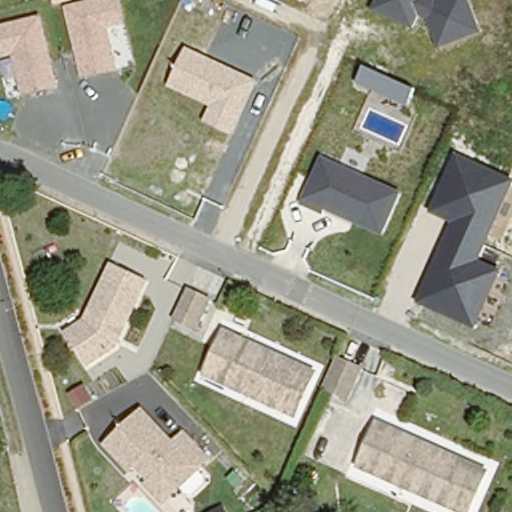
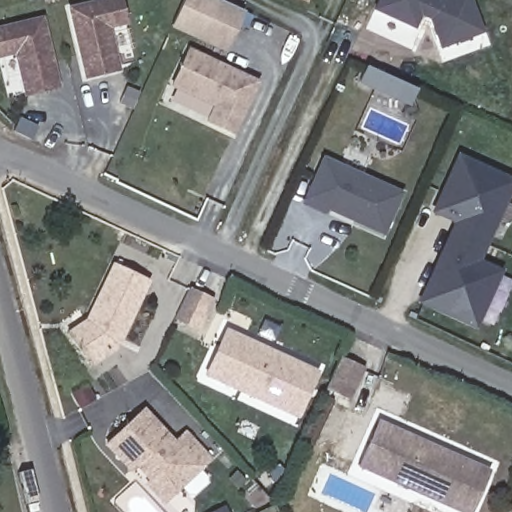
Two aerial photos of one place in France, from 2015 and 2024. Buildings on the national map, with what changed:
unchanged [(120,40),(112,42),(119,69),(105,73),(103,67),(86,72),(72,10),(114,0),(120,0),(126,24),(116,27),(120,40)]
new [(173,26),(184,0),(220,0),(244,11),(226,49),(173,26)]
unchanged [(296,0),(304,0),(303,3),(296,0)]
unchanged [(432,20),(422,16),(416,32),(372,12),(377,0),(438,0),(472,0),(484,34),(442,49),(432,20)]
unchanged [(41,20),(57,87),(27,95),(17,51),(0,55),(0,30),(41,20)]
unchanged [(233,137),(204,123),(211,106),(169,87),(186,47),(258,82),(233,137)]
new [(408,106),(357,84),(365,67),(417,90),(408,106)]
unchanged [(503,271),(477,330),(417,303),(453,223),(429,212),(457,153),(512,177),(512,189),(480,262),(503,271)]
unchanged [(386,237),(305,200),(326,158),(403,194),(386,237)]
unchanged [(114,347),(85,365),(65,333),(85,320),(112,264),(147,281),(114,347)]
unchanged [(201,329),(177,318),(183,307),(192,288),(215,299),(201,329)]
unchanged [(296,415),(205,374),(224,330),(316,371),(296,415)]
unchanged [(348,401),(330,393),(325,391),(338,361),(344,363),(362,371),(348,401)]
unchanged [(151,488),(155,485),(140,468),(134,473),(109,447),(146,413),(177,445),(187,435),(212,461),(201,472),(166,505),(151,488)]
unchanged [(467,512),(465,512),(390,480),(357,466),(370,435),(376,422),(486,468),(467,512)]

